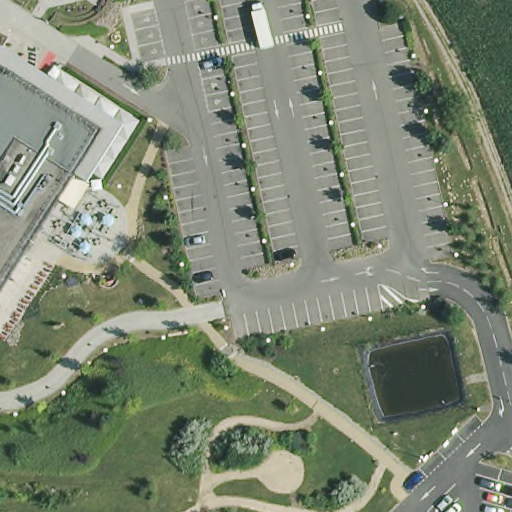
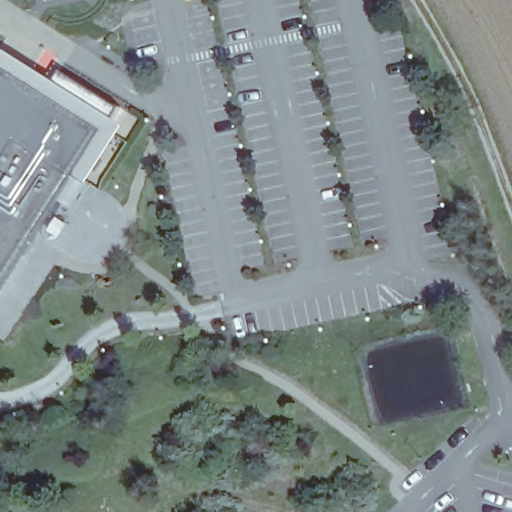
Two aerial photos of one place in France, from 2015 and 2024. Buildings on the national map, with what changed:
unchanged [(88,181),(75,173),(0,293),(0,44),(49,74),(55,66),(139,121),(103,179),(94,174),(88,181)]

